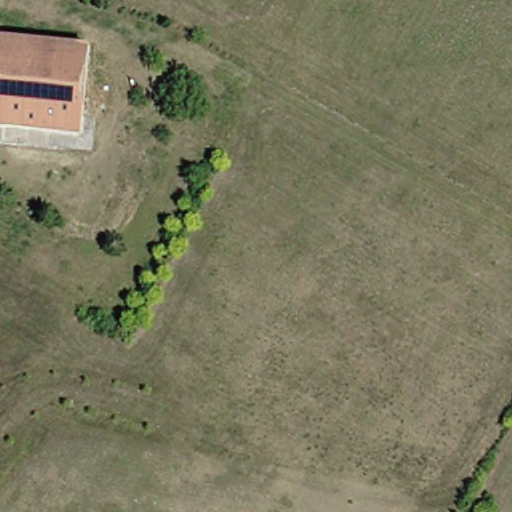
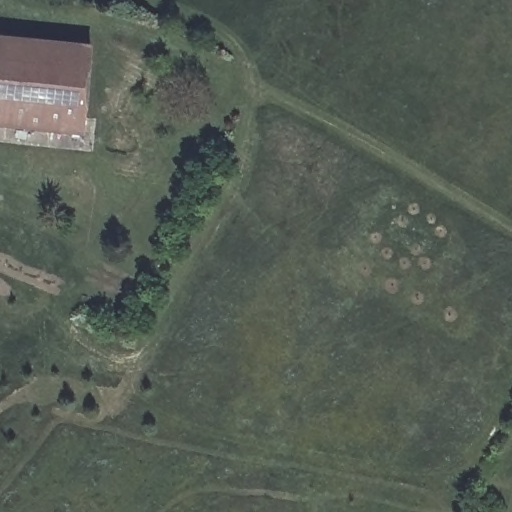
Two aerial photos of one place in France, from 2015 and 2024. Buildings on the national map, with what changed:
unchanged [(88,54),(73,140),(0,127),(0,37),(88,54)]

